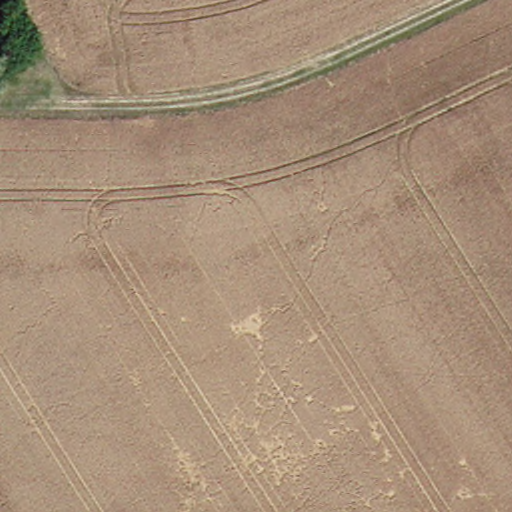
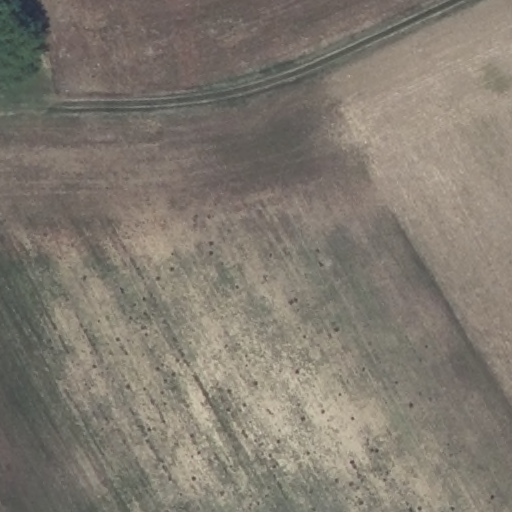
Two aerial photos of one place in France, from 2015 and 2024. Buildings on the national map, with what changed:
[]

